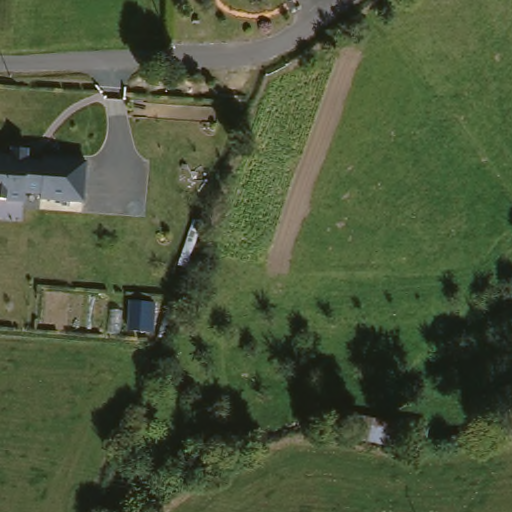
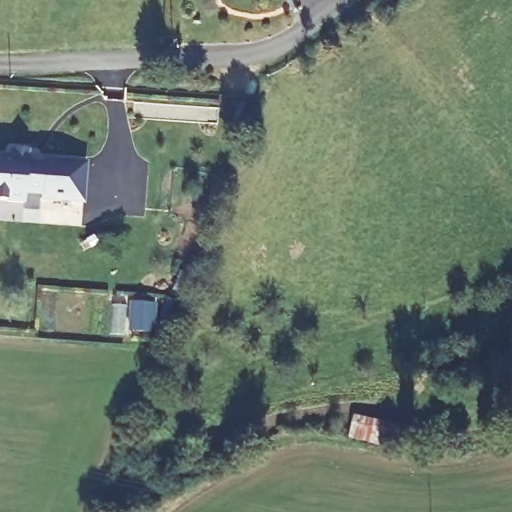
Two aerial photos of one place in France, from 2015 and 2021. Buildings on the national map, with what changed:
unchanged [(82,200),(40,197),(40,193),(25,192),(25,200),(0,198),(0,152),(10,151),(10,146),(29,146),(30,159),(42,159),(42,157),(86,160),(82,200)]

